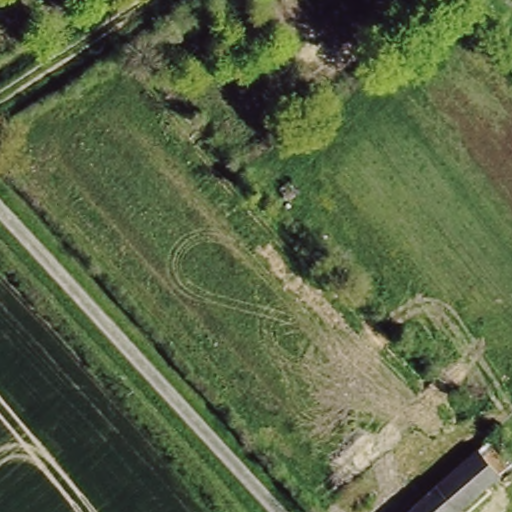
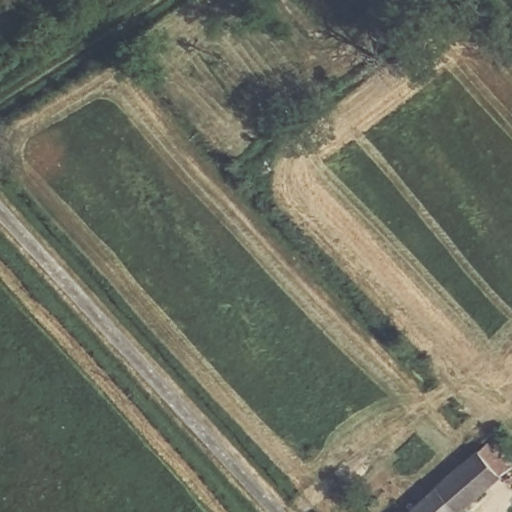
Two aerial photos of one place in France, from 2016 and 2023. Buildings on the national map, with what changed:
unchanged [(458,512),(408,512),(487,442),(512,470),(458,512)]

